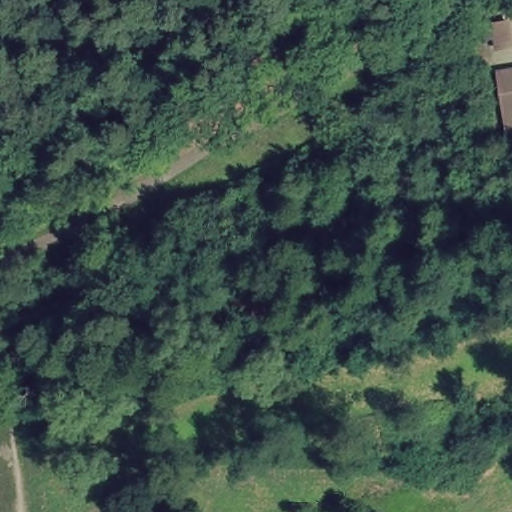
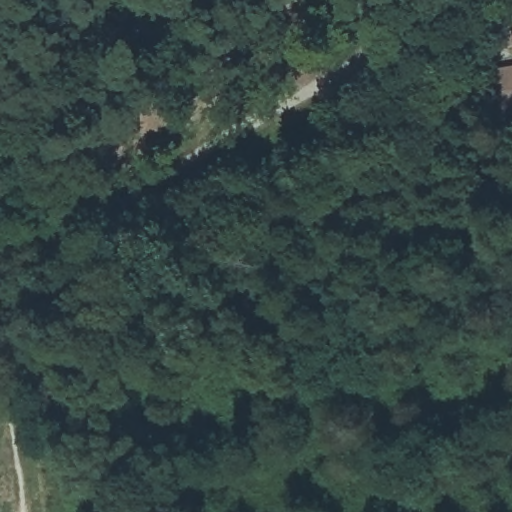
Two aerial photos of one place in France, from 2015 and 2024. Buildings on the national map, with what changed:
unchanged [(501,24),(512,22),(512,44),(504,45),(501,24)]
unchanged [(512,71),(512,99),(508,72),(512,71)]

